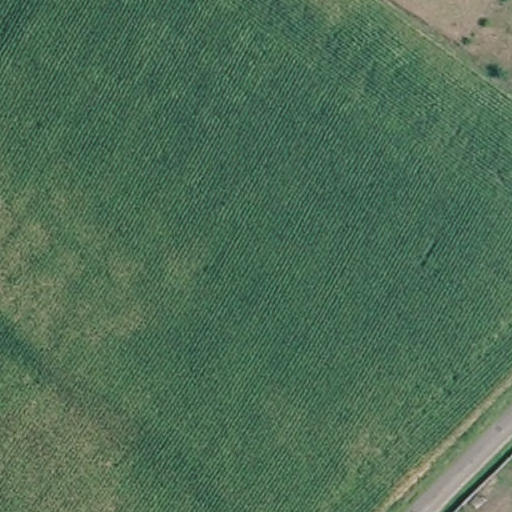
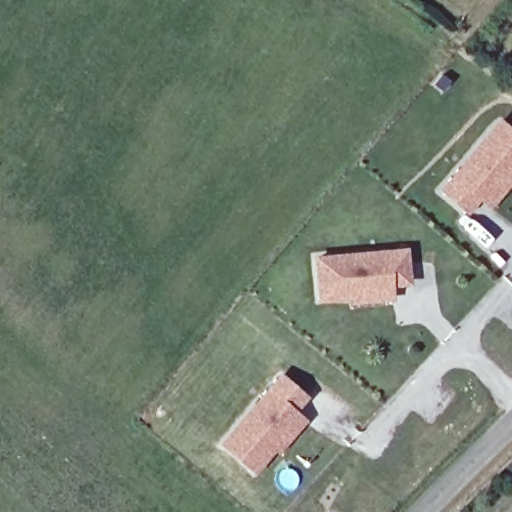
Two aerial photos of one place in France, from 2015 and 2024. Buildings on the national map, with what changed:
new [(487,212),(479,203),(467,215),(439,187),(499,119),(512,131),(512,185),(487,212)]
new [(392,287),(393,301),(353,306),(352,300),(318,304),(312,257),(407,248),(411,284),(392,287)]
new [(308,399),(295,412),(306,422),(277,455),(273,451),(253,474),(219,443),(279,371),(308,399)]

